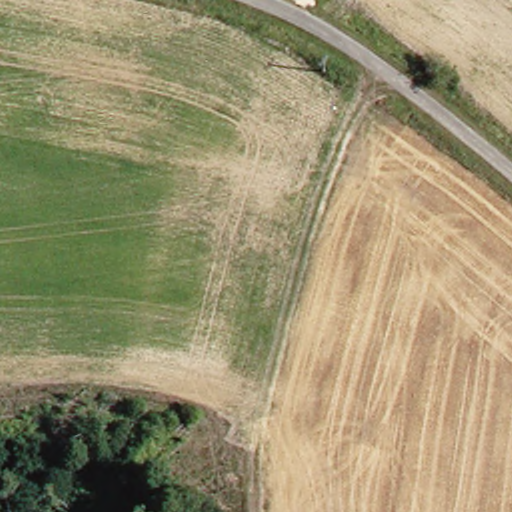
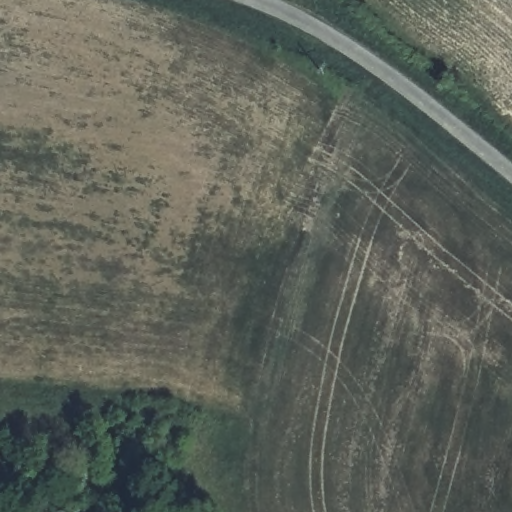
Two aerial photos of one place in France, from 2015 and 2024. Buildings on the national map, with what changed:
[]

